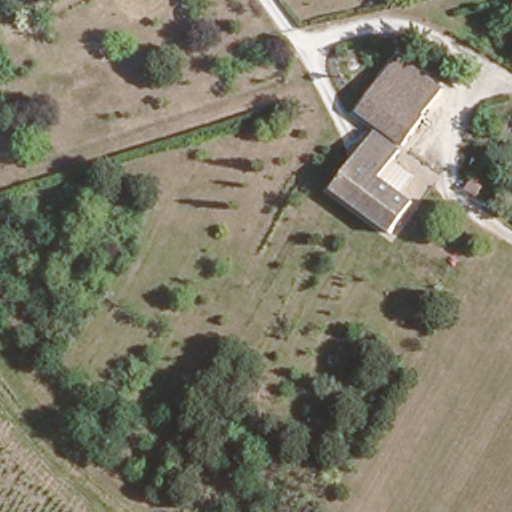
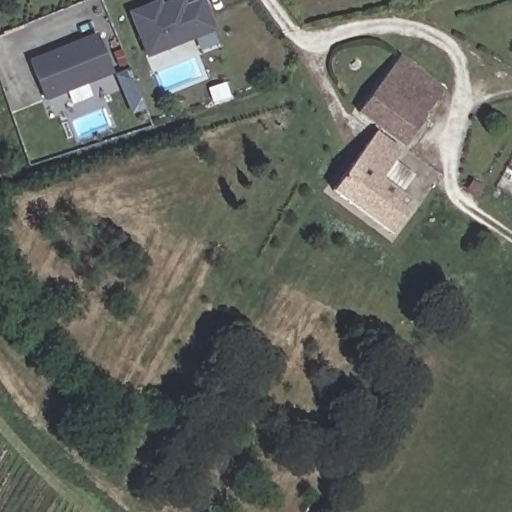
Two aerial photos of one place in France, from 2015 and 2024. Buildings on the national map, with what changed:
new [(129,11),(154,0),(162,0),(162,2),(167,0),(204,0),(216,30),(145,57),(129,11)]
new [(96,32),(112,74),(45,100),(28,59),(96,32)]
unchanged [(445,85),(383,172),(416,195),(383,234),(322,192),(371,124),(354,108),(401,52),(445,85)]
new [(461,221),(486,232),(479,253),(453,243),(461,221)]

